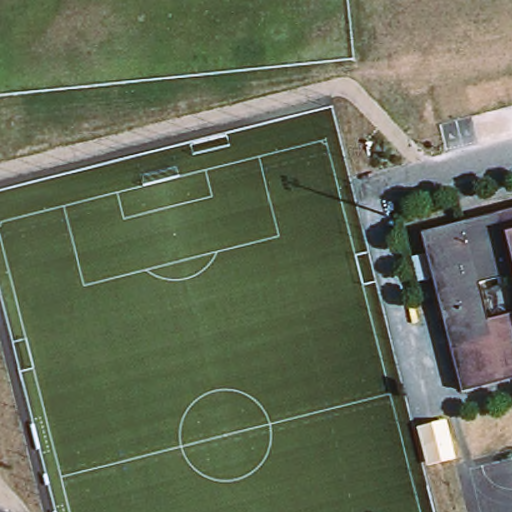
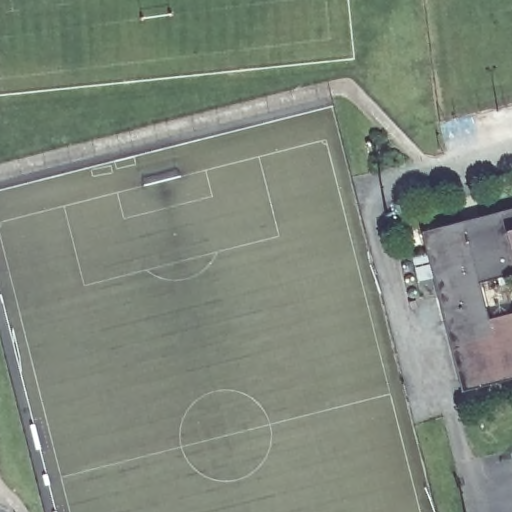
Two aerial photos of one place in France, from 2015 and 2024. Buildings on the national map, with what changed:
unchanged [(512,212),(512,278),(477,288),(486,325),(512,317),(512,381),(463,396),(421,235),(512,212)]

